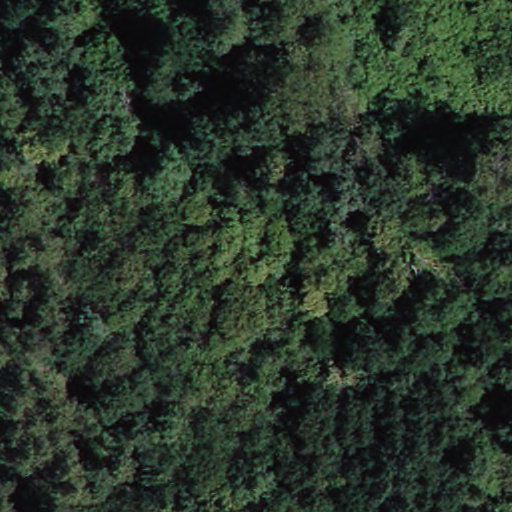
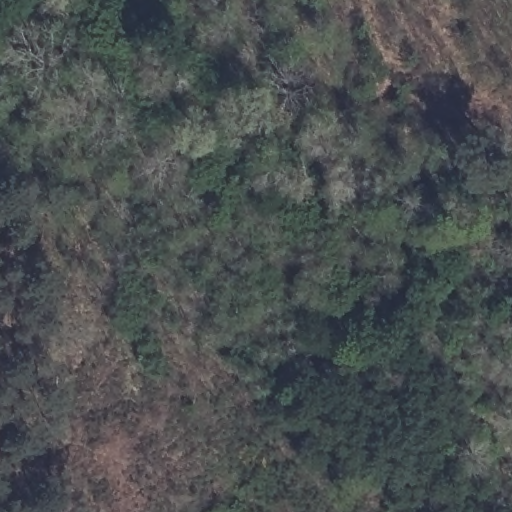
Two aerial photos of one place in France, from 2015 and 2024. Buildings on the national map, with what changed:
unchanged [(232,512),(206,512),(205,510),(230,503),(232,512)]

